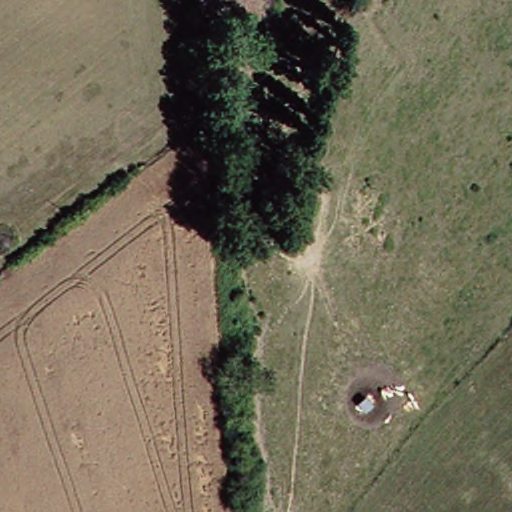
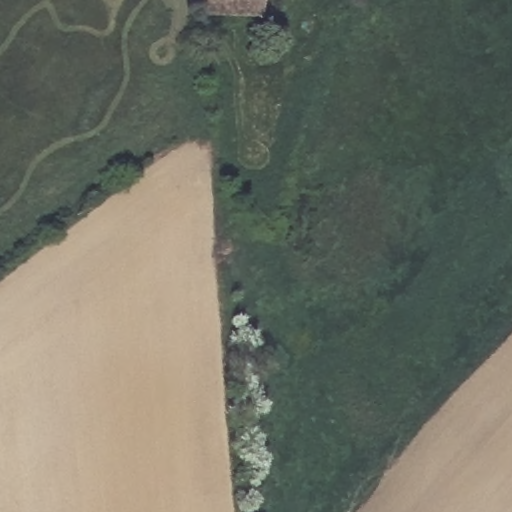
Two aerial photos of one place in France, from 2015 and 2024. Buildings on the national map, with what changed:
unchanged [(196,24),(197,14),(190,15),(190,0),(251,0),(249,26),(196,24)]

